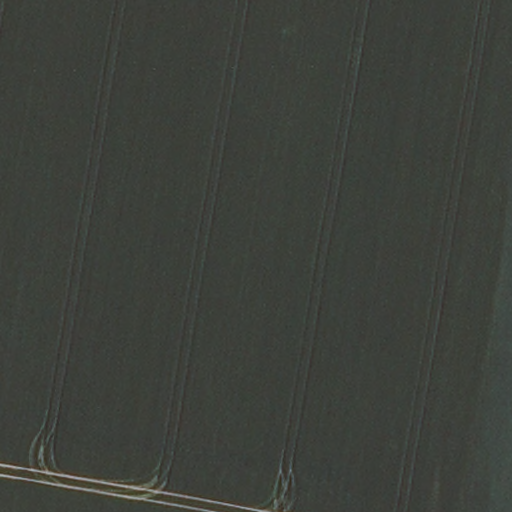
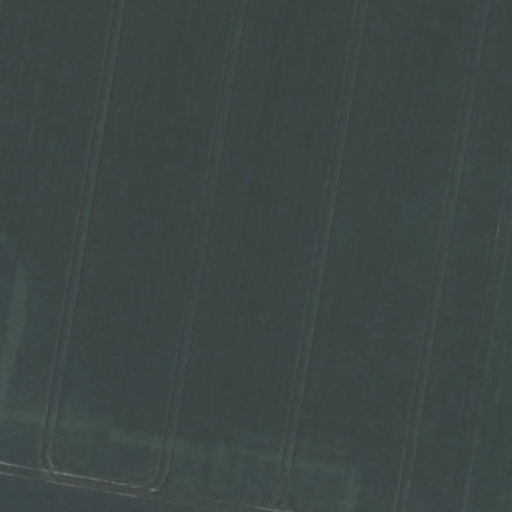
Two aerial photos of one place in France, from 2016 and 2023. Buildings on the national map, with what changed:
[]

